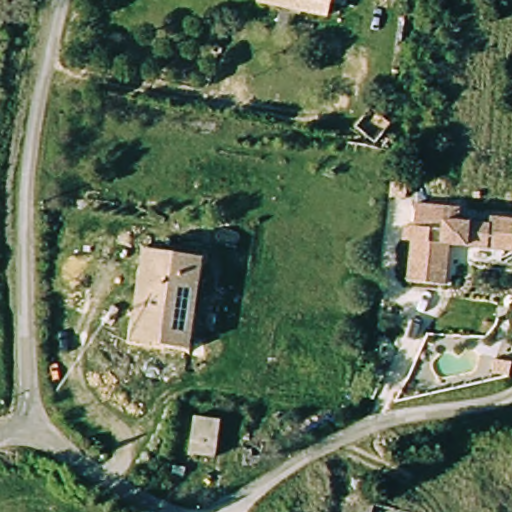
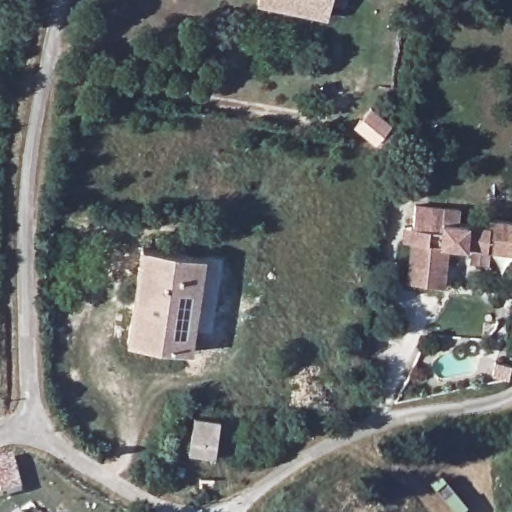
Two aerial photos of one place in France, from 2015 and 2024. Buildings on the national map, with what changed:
unchanged [(332,0),(329,22),(254,7),(255,0),(332,0)]
unchanged [(487,249),(448,244),(444,285),(408,280),(412,240),(403,239),(405,224),(413,225),(442,229),(444,206),(460,208),(459,221),(490,225),(490,218),(512,221),(512,252),(487,249)]
unchanged [(144,252),(202,260),(189,358),(131,351),(144,252)]
unchanged [(194,419),(218,425),(209,460),(185,455),(194,419)]
new [(22,488),(0,494),(0,460),(14,456),(22,488)]
new [(21,510),(22,512),(19,512),(21,510)]

